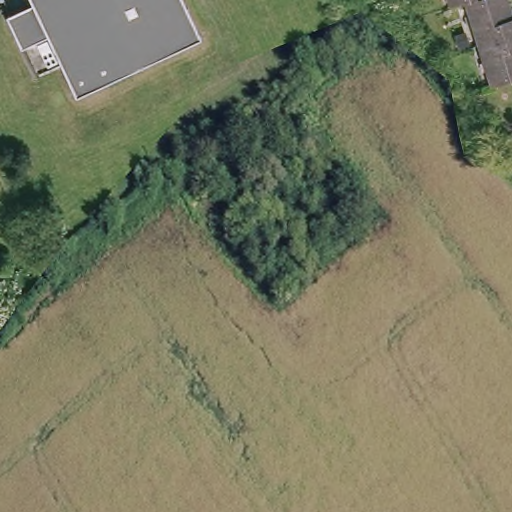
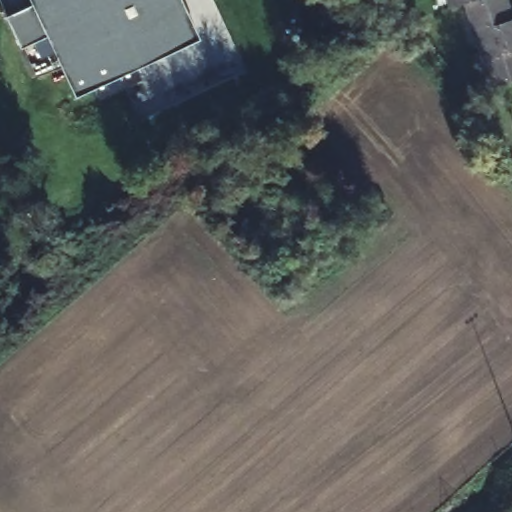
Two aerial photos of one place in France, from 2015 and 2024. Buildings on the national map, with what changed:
unchanged [(27,0),(176,0),(197,43),(181,51),(155,64),(109,85),(82,98),(75,101),(46,40),(20,53),(10,30),(6,22),(32,10),(27,0)]
unchanged [(451,2),(450,0),(457,0),(451,2)]
unchanged [(512,14),(512,77),(492,83),(477,40),(465,0),(507,0),(512,14)]

